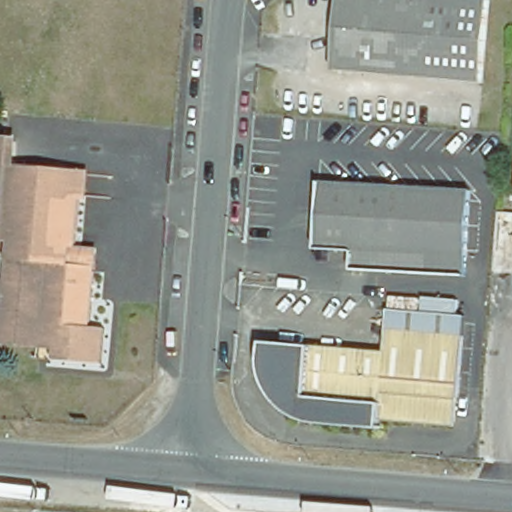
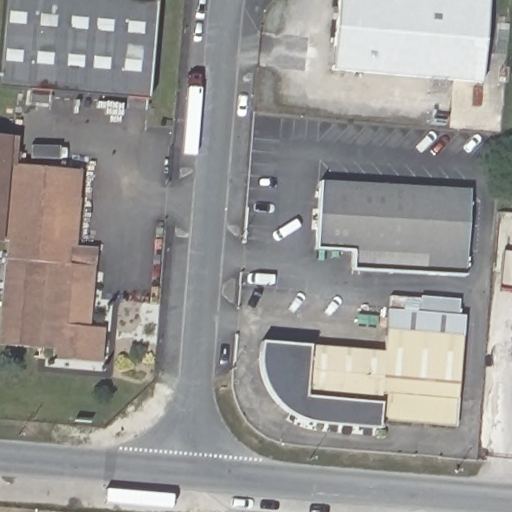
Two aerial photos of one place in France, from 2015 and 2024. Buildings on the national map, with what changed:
new [(137,0),(165,2),(164,6),(155,104),(5,90),(13,0),(137,0)]
unchanged [(490,13),(484,86),(337,75),(343,2),(490,13)]
unchanged [(78,175),(86,175),(84,194),(77,194),(71,259),(65,258),(63,275),(87,278),(83,341),(98,342),(96,377),(50,372),(51,352),(2,346),(11,247),(0,246),(0,139),(6,139),(6,145),(4,167),(78,175)]
unchanged [(474,199),(469,266),(468,282),(354,276),(355,258),(314,256),(319,189),(474,199)]
unchanged [(383,425),(382,432),(324,427),(316,425),(308,423),(300,420),(292,416),(286,411),(280,405),(275,398),(270,391),(267,383),(264,375),(263,367),(263,358),(264,350),(266,342),(389,353),(392,312),(463,320),(456,400),(451,400),(449,422),(448,432),(383,425)]

